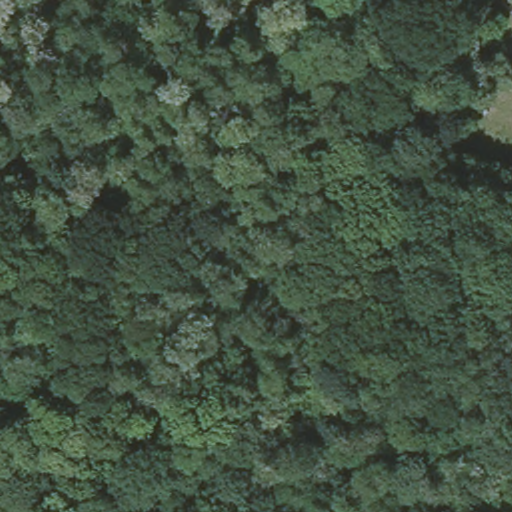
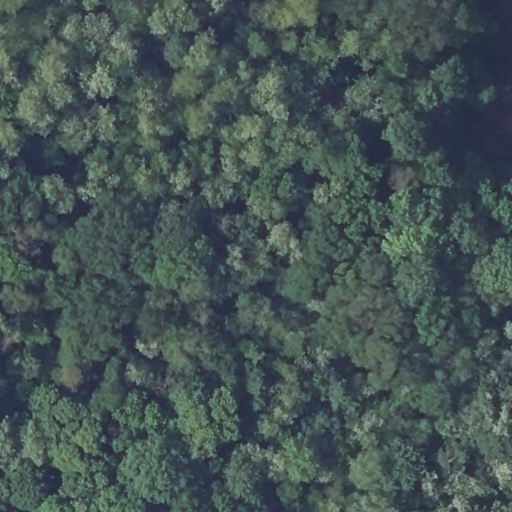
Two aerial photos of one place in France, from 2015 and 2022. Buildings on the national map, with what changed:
unchanged [(413,170),(424,140),(512,170),(512,204),(413,170)]

